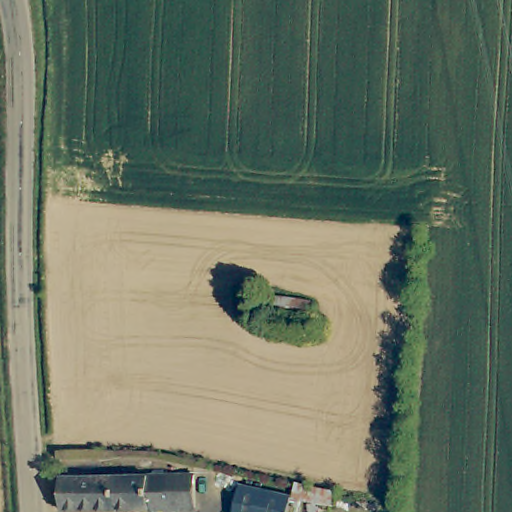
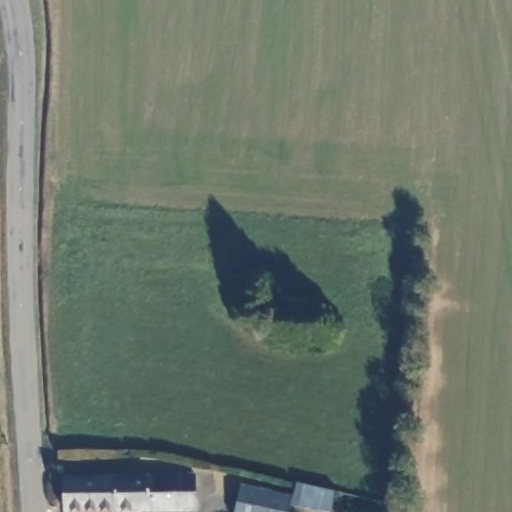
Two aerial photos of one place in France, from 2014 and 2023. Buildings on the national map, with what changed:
unchanged [(268,295),(312,301),(310,320),(266,314),(268,295)]
unchanged [(197,509),(182,509),(81,512),(64,512),(62,478),(179,473),(196,474),(197,509)]
unchanged [(331,505),(314,501),(293,496),(297,482),(334,491),(331,505)]
unchanged [(288,512),(236,512),(242,486),(291,497),(288,512)]

